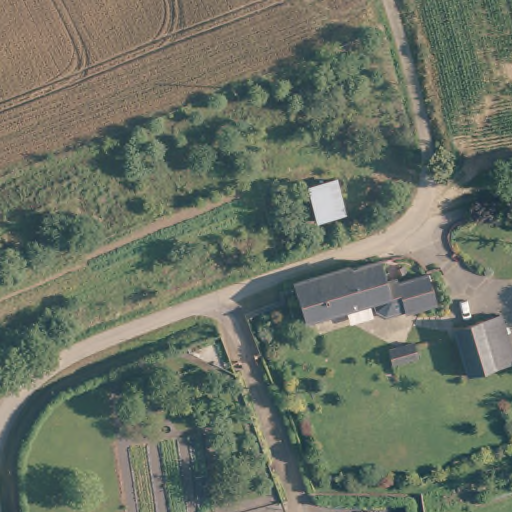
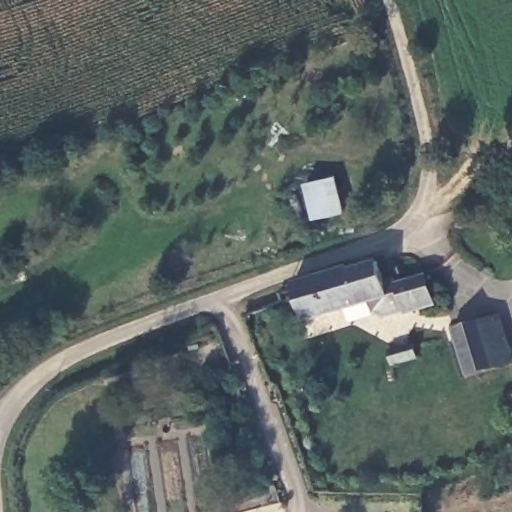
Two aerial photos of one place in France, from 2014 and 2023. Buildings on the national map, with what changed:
unchanged [(332,174),(339,208),(312,215),(304,182),(332,174)]
unchanged [(352,265),(354,270),(381,261),(387,281),(398,278),(398,280),(428,271),(437,301),(407,311),(406,308),(386,315),(376,309),(373,299),(307,320),(296,282),(352,265)]
unchanged [(453,328),(481,319),(499,313),(512,356),(512,361),(494,367),(467,376),(453,328)]
unchanged [(433,352),(428,349),(426,344),(427,338),(430,334),(434,332),(438,332),(444,334),(444,346),(437,350),(433,352)]
unchanged [(387,350),(411,341),(416,357),(393,365),(387,350)]

